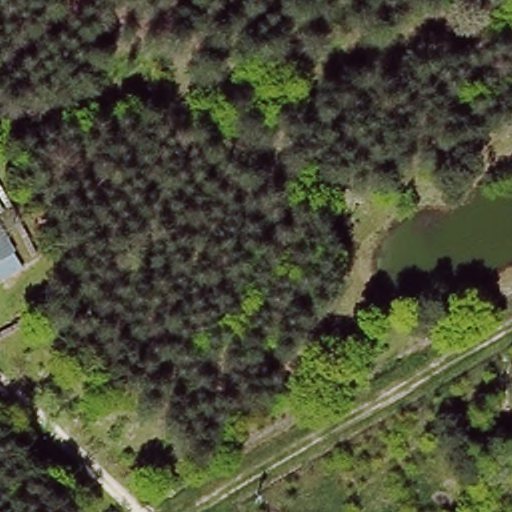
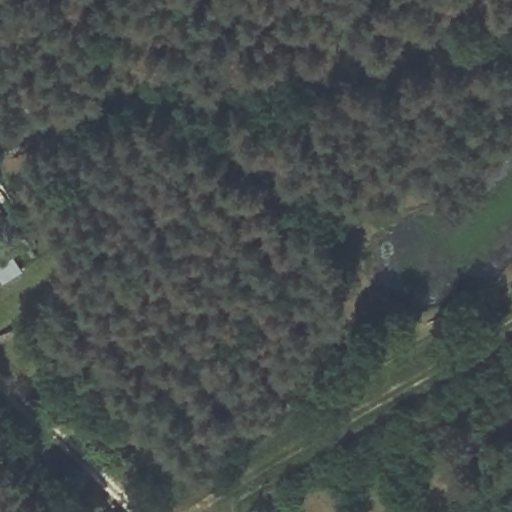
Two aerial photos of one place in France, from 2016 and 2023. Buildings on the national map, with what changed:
unchanged [(11,253),(0,260),(0,237),(11,253)]

